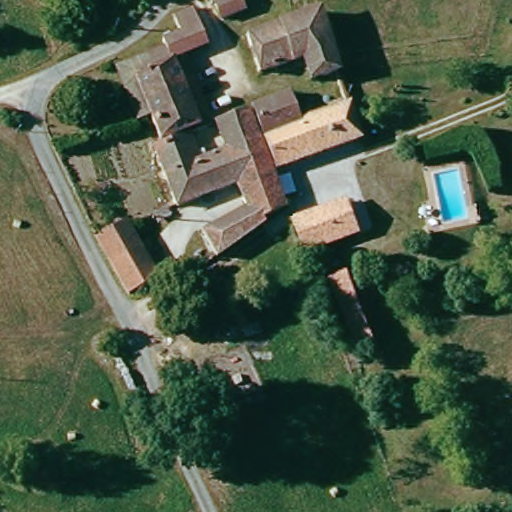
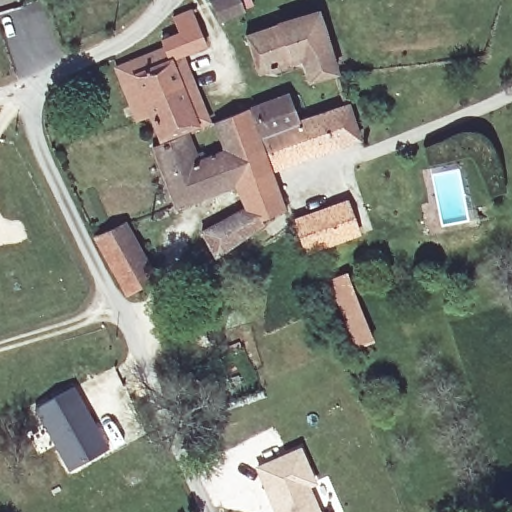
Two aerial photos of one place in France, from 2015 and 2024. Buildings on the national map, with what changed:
unchanged [(240,20),(218,29),(213,12),(232,3),(240,20)]
unchanged [(316,11),(337,67),(307,78),(298,57),(260,72),(245,39),(255,36),(316,11)]
unchanged [(147,121),(130,127),(110,68),(155,51),(147,33),(155,26),(184,12),(198,50),(187,54),(169,61),(192,127),(154,141),(147,121)]
unchanged [(192,127),(169,61),(187,54),(210,120),(192,127)]
unchanged [(258,136),(251,115),(287,104),(293,124),(295,127),(348,114),(358,142),(270,170),(258,136)]
unchanged [(233,192),(174,211),(154,150),(183,139),(194,170),(223,162),(215,127),(245,117),(253,138),(264,171),(275,212),(250,220),(239,210),(233,192)]
unchanged [(295,226),(345,207),(357,237),(306,254),(295,226)]
unchanged [(250,220),(257,229),(210,257),(197,237),(239,210),(250,220)]
unchanged [(92,237),(118,224),(152,282),(126,296),(92,237)]
unchanged [(327,280),(346,272),(374,345),(355,351),(327,280)]
new [(34,410),(72,388),(107,450),(68,471),(34,410)]
new [(313,480),(327,474),(342,507),(331,512),(277,512),(280,502),(277,497),(272,498),(257,466),(298,447),(313,480)]

